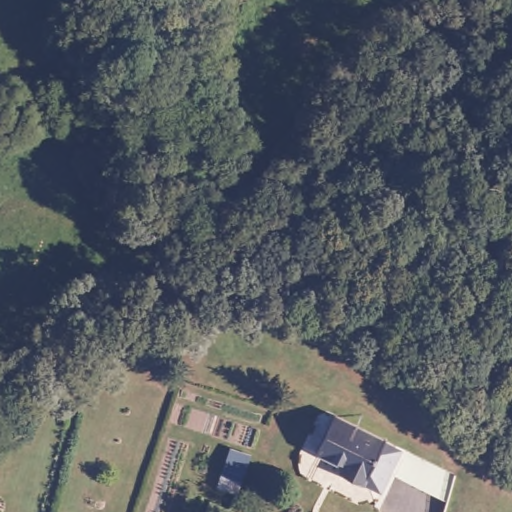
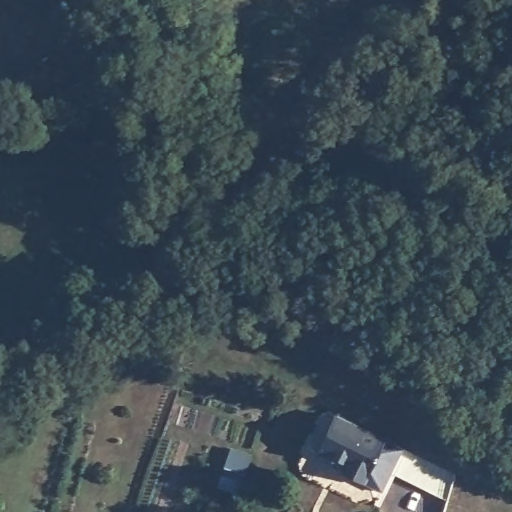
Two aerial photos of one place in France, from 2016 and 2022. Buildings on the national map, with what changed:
unchanged [(364,483),(333,470),(338,463),(308,449),(325,412),(383,439),(364,483)]
unchanged [(214,492),(228,450),(247,456),(234,498),(214,492)]

